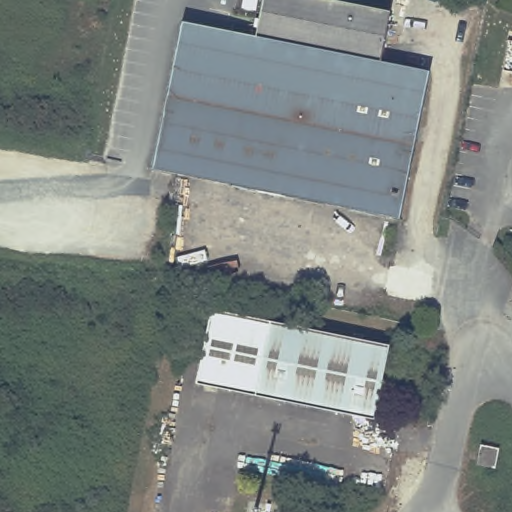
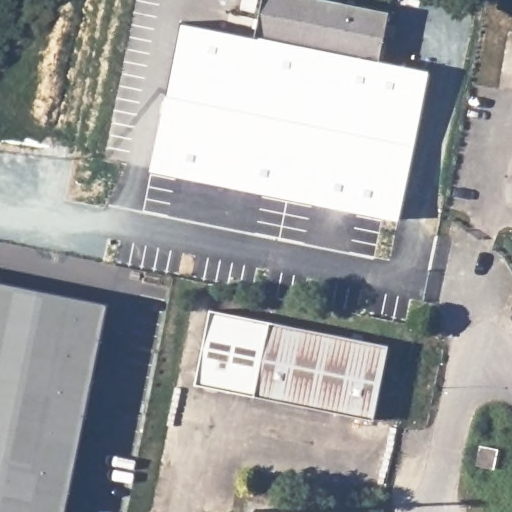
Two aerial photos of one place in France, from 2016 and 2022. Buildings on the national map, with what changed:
unchanged [(256,35),(264,0),(324,0),(389,13),(379,60),(429,71),(401,219),(194,177),(224,30),(256,35)]
unchanged [(153,170),(182,21),(224,30),(194,177),(153,170)]
new [(0,512),(0,281),(110,302),(68,512),(0,512)]
unchanged [(393,345),(379,414),(199,378),(214,309),(393,345)]
unchanged [(498,447),(495,466),(478,464),(480,445),(498,447)]

